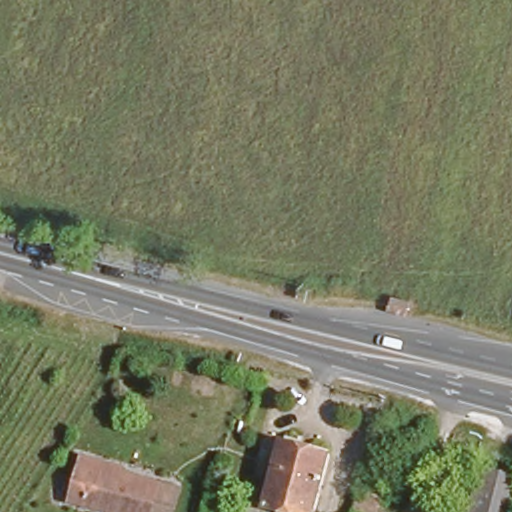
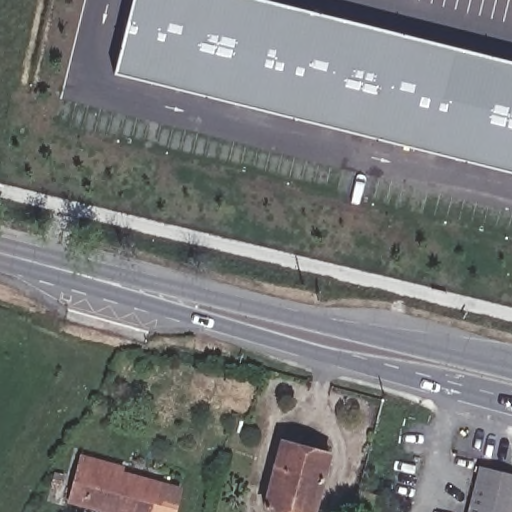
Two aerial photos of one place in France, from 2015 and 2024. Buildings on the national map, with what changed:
new [(512,171),(116,72),(134,0),(258,0),(512,63),(512,171)]
unchanged [(278,437),(325,449),(309,512),(292,512),(262,503),(278,437)]
unchanged [(104,458),(102,462),(160,477),(151,512),(131,512),(67,496),(79,452),(104,458)]
unchanged [(479,461),(512,470),(512,512),(469,500),(474,480),(479,461)]
unchanged [(362,491),(385,496),(382,512),(357,512),(362,491)]
unchanged [(469,500),(512,512),(466,512),(469,500)]

